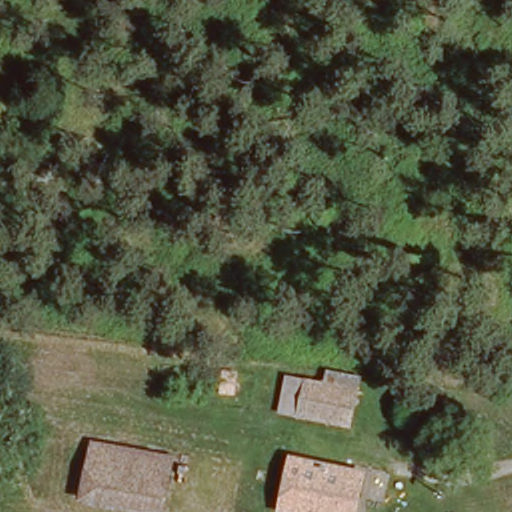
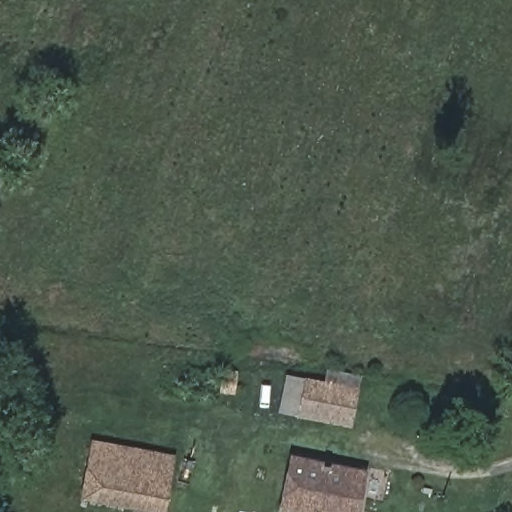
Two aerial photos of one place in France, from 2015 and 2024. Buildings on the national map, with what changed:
unchanged [(309,407),(313,385),(314,378),(350,385),(355,386),(351,415),(309,407)]
unchanged [(171,465),(159,511),(87,492),(99,446),(171,465)]
unchanged [(350,512),(315,512),(282,502),(297,454),(362,475),(350,512)]

